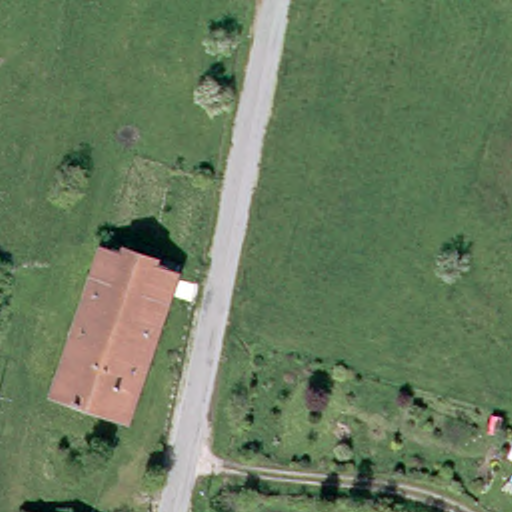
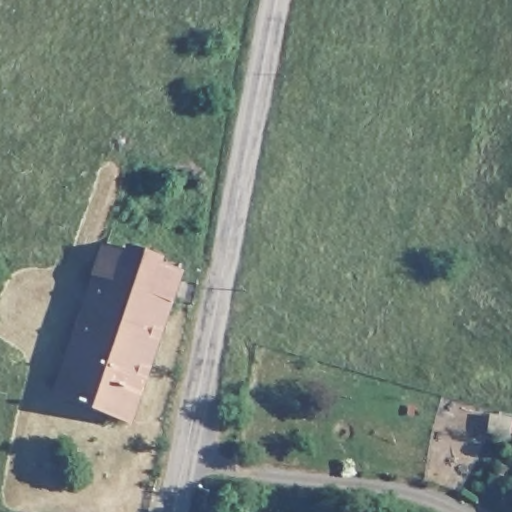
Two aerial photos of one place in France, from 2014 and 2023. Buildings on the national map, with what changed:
unchanged [(128,421),(54,398),(102,252),(176,277),(128,421)]

